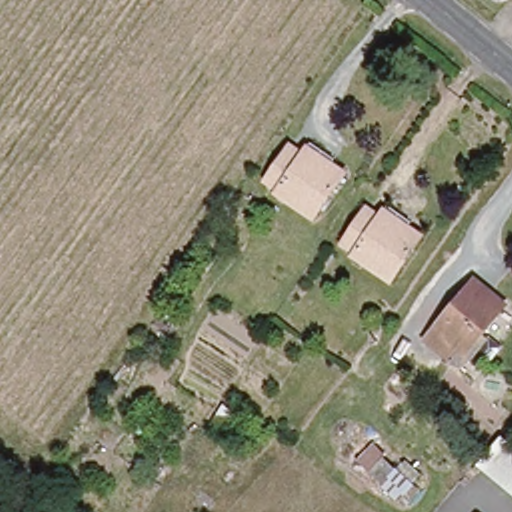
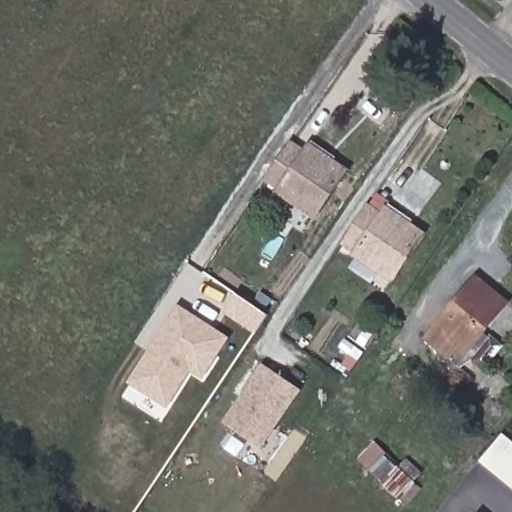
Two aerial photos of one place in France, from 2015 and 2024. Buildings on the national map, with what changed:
unchanged [(276,195),(278,192),(267,184),(290,149),(302,157),(303,155),(306,150),(326,165),(339,173),(343,176),(313,220),(308,217),(276,195)]
unchanged [(391,284),(355,260),(356,257),(344,249),(368,212),(380,221),(382,219),(385,214),(406,229),(421,239),(391,284)]
unchanged [(451,341),(442,352),(440,351),(421,335),(470,275),(487,290),(500,300),(460,349),(451,341)]
new [(203,380),(192,372),(167,410),(128,384),(178,305),(230,338),(203,380)]
new [(263,366),(299,391),(259,449),(223,425),(263,366)]
new [(501,433),(512,442),(512,488),(480,461),(501,433)]
unchanged [(395,465),(418,482),(399,501),(380,484),(395,465)]

